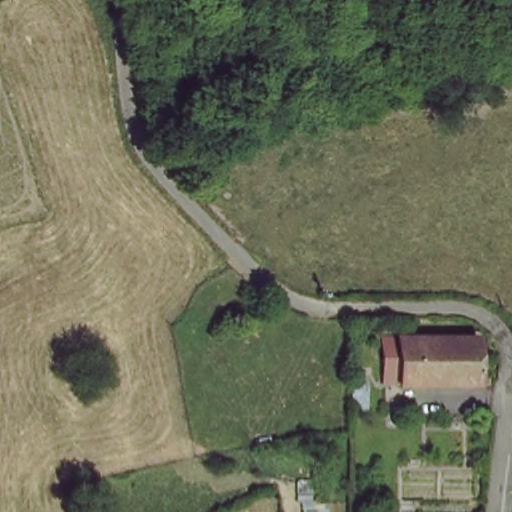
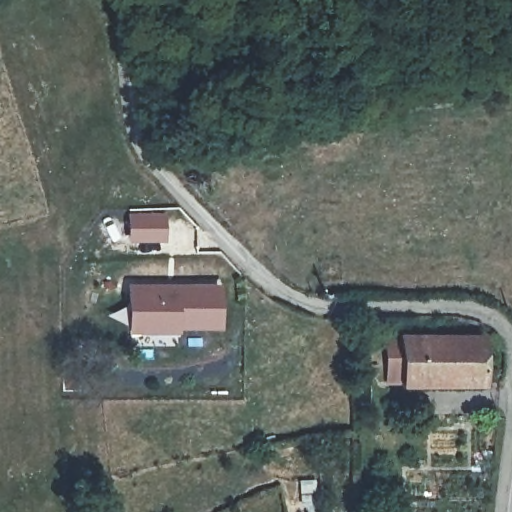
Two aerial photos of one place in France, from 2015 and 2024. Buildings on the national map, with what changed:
new [(128,284),(223,284),(223,330),(181,330),(181,334),(129,334),(128,284)]
unchanged [(406,384),(404,337),(484,337),(484,385),(406,384)]

